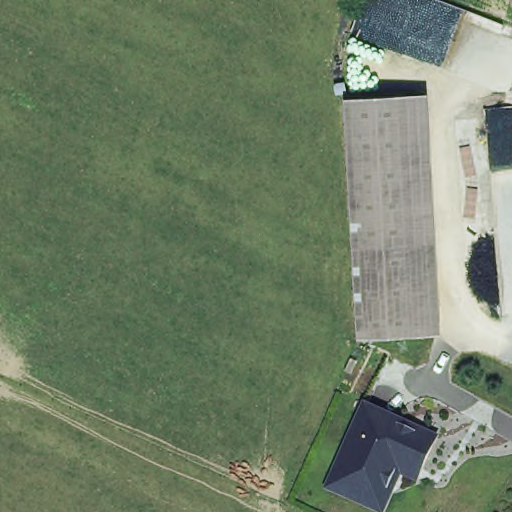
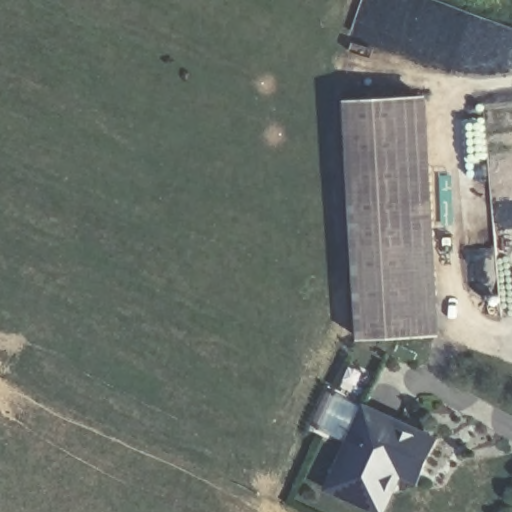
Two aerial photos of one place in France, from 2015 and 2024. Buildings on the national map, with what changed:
unchanged [(363,341),(351,97),(435,95),(448,338),(363,341)]
unchanged [(442,436),(420,484),(404,477),(388,512),(378,512),(327,491),(366,404),(442,436)]

